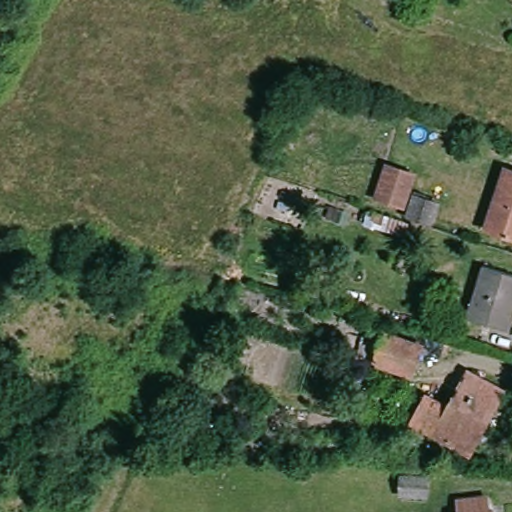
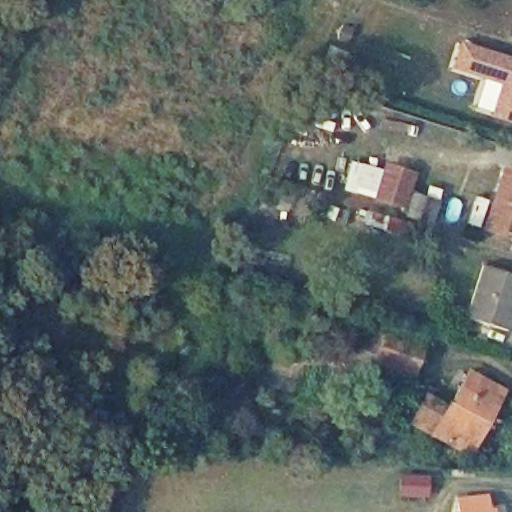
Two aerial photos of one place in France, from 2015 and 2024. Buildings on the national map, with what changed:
new [(491,119),(501,83),(452,69),(459,42),(512,59),(512,125),(491,119)]
unchanged [(404,201),(376,192),(386,161),(414,170),(404,201)]
unchanged [(485,228),(505,169),(512,171),(512,237),(485,228)]
unchanged [(431,217),(407,210),(414,191),(437,198),(431,217)]
unchanged [(507,332),(467,318),(483,266),(512,275),(512,315),(507,332)]
unchanged [(411,374),(375,362),(385,333),(408,341),(422,346),(411,374)]
unchanged [(426,397),(449,407),(468,372),(503,392),(469,455),(434,435),(412,423),(426,397)]
unchanged [(425,495),(402,495),(402,477),(426,478),(425,495)]
unchanged [(491,512),(459,512),(458,500),(485,497),(487,512),(491,511),(491,512)]

